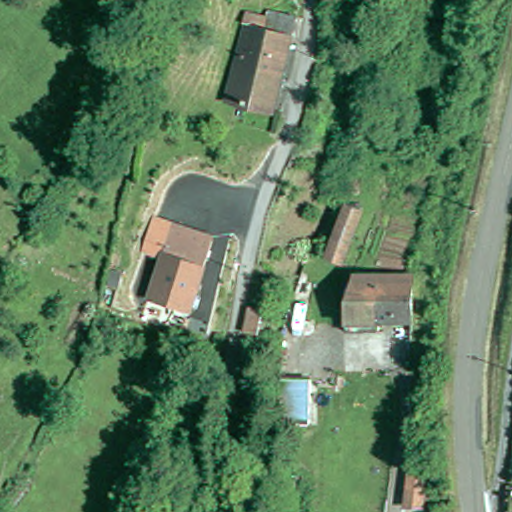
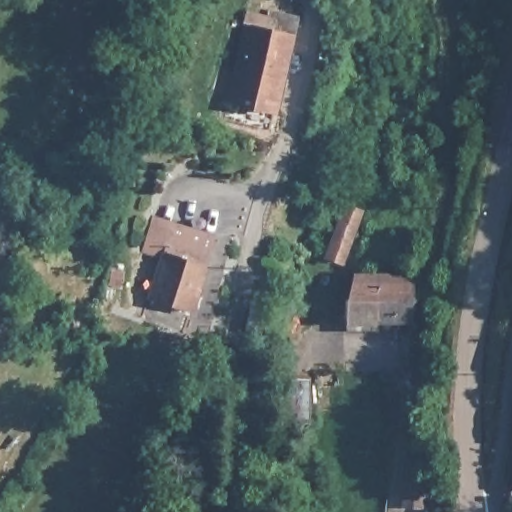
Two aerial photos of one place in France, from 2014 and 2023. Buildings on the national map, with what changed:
unchanged [(299,30),(277,124),(232,112),(250,35),(245,34),(248,24),(269,30),(271,23),(299,30)]
unchanged [(367,214),(348,264),(332,257),(351,207),(367,214)]
unchanged [(211,269),(197,314),(157,300),(171,256),(211,269)]
unchanged [(417,323),(384,324),(384,332),(352,333),(352,303),(359,303),(359,277),(417,278),(417,323)]
unchanged [(315,380),(315,425),(287,425),(287,380),(315,380)]

